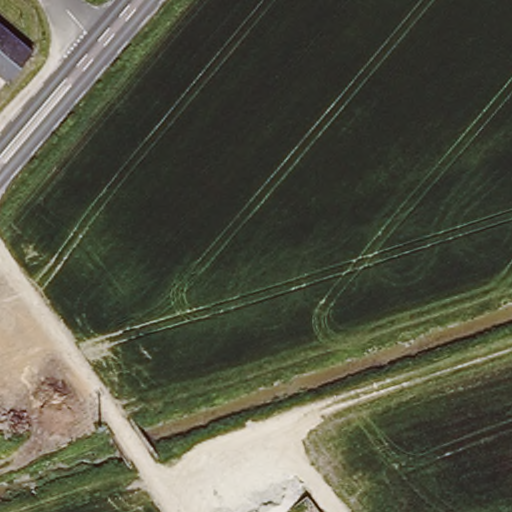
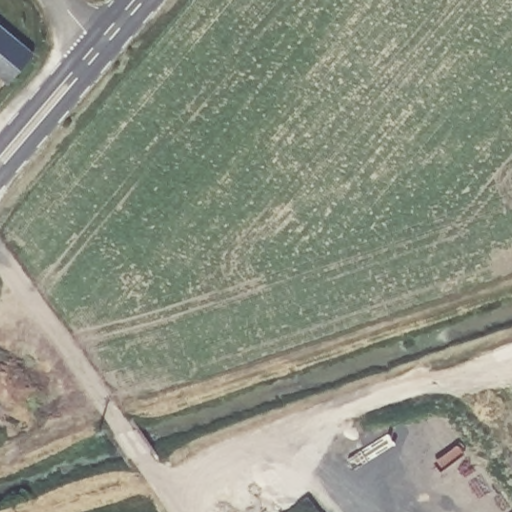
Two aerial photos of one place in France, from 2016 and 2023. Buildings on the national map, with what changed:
unchanged [(12,73),(0,63),(0,13),(38,45),(12,73)]

